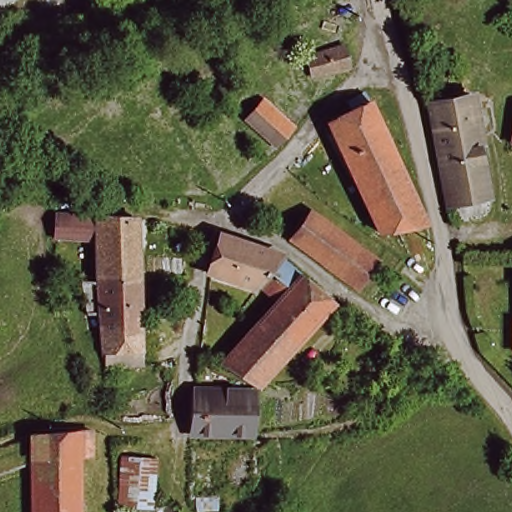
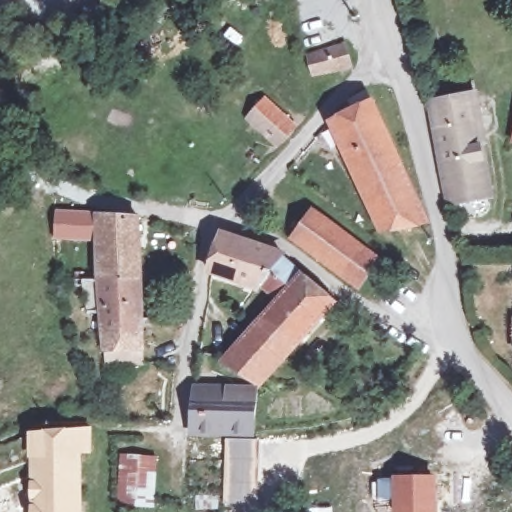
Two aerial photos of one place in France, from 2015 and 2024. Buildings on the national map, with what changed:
unchanged [(310,60),(346,44),(354,64),(319,81),(310,60)]
unchanged [(491,200),(451,205),(434,105),(476,98),(491,200)]
unchanged [(381,235),(361,175),(335,130),(354,121),(351,110),(369,99),(399,159),(404,158),(414,195),(418,231),(381,235)]
unchanged [(249,119),(265,100),(295,124),(279,144),(249,119)]
unchanged [(311,213),(377,263),(360,285),(294,235),(311,213)]
unchanged [(92,215),(93,244),(54,244),(54,215),(92,215)]
unchanged [(93,244),(92,215),(136,220),(139,284),(96,281),(93,244)]
unchanged [(211,273),(221,239),(266,248),(253,284),(249,291),(211,273)]
unchanged [(253,284),(266,248),(283,251),(311,276),(341,298),(300,343),(263,311),(272,300),(253,284)]
unchanged [(139,284),(143,361),(101,365),(98,315),(85,315),(80,284),(96,281),(139,284)]
unchanged [(263,311),(300,343),(265,382),(259,386),(221,363),(263,311)]
unchanged [(246,397),(255,397),(259,429),(248,430),(198,436),(198,400),(246,397)]
unchanged [(32,495),(29,430),(75,437),(88,438),(88,460),(75,459),(75,512),(32,512),(32,495)]
unchanged [(119,463),(156,463),(154,506),(154,510),(118,510),(118,506),(119,463)]
new [(437,473),(437,512),(392,512),(391,500),(376,500),(374,478),(437,473)]
new [(333,506),(333,512),(306,512),(306,507),(333,506)]

